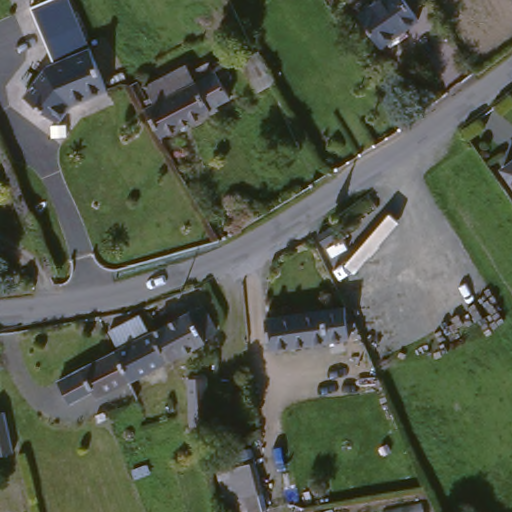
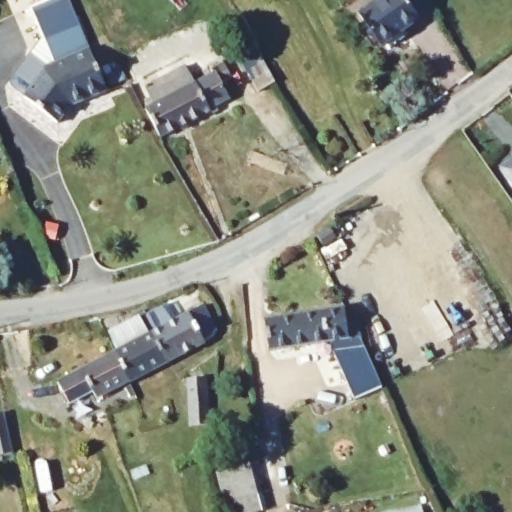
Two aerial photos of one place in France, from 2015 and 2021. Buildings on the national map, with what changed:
unchanged [(93,43),(94,43),(112,86),(76,101),(63,119),(28,91),(53,60),(59,57),(36,2),(41,0),(75,0),(93,43)]
unchanged [(359,15),(379,0),(404,0),(419,20),(382,47),(359,15)]
unchanged [(241,62),(258,52),(275,84),(258,92),(241,62)]
unchanged [(225,102),(228,107),(221,110),(220,107),(170,134),(156,105),(153,106),(151,103),(149,99),(140,80),(147,77),(156,95),(161,92),(155,81),(196,61),(200,69),(219,59),(222,65),(234,59),(241,74),(231,79),(239,95),(225,102)]
unchanged [(507,170),(512,167),(512,178),(507,170)]
unchanged [(318,236),(330,228),(337,239),(324,246),(318,236)]
unchanged [(159,327),(194,308),(208,301),(221,327),(219,331),(208,336),(209,338),(174,356),(159,327)]
unchanged [(274,346),(269,315),(349,303),(352,319),(359,318),(366,333),(354,335),(274,346)]
unchanged [(121,347),(123,345),(113,327),(144,311),(154,330),(159,327),(174,356),(136,376),(121,347)]
new [(354,335),(359,334),(364,347),(381,387),(355,399),(333,351),(336,351),(333,337),(354,335)]
unchanged [(136,376),(134,377),(101,393),(97,386),(74,398),(63,377),(118,349),(120,347),(121,347),(136,376)]
unchanged [(214,420),(194,421),(192,375),(211,373),(214,420)]
unchanged [(0,452),(0,410),(9,408),(18,448),(0,452)]
unchanged [(260,512),(231,512),(218,472),(255,463),(267,510),(260,512)]

